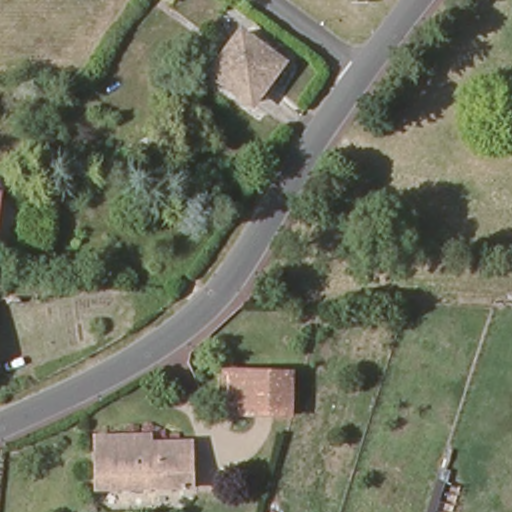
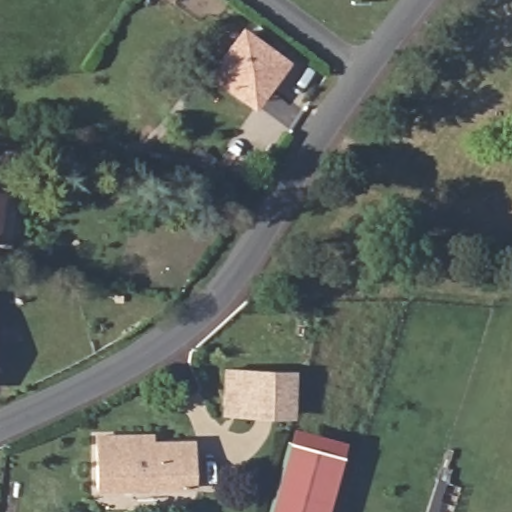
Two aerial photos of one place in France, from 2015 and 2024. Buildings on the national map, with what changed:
unchanged [(167,0),(168,0),(168,1),(167,0)]
demolished [(187,0),(192,0),(190,3),(187,0)]
unchanged [(290,64),(256,112),(210,76),(243,30),(290,64)]
unchanged [(2,232),(0,231),(0,194),(4,195),(2,232)]
unchanged [(292,374),(291,417),(225,416),(226,373),(292,374)]
new [(291,428),(345,443),(327,512),(268,512),(291,428)]
unchanged [(157,435),(157,447),(196,445),(199,491),(101,493),(100,437),(157,435)]

